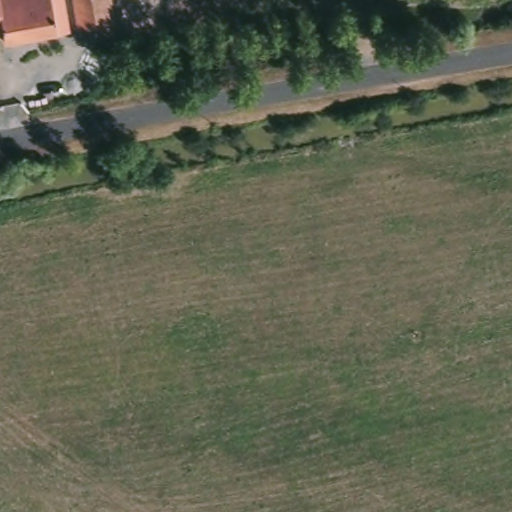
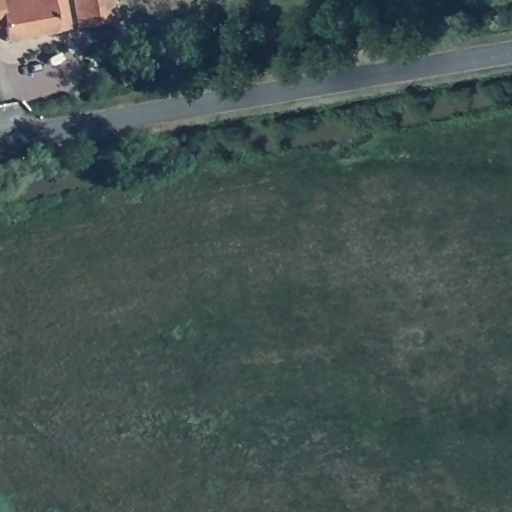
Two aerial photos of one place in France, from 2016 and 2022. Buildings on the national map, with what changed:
unchanged [(5,42),(3,28),(0,28),(0,0),(52,0),(53,4),(67,2),(71,32),(5,42)]
unchanged [(73,0),(116,0),(124,42),(83,52),(73,0)]

